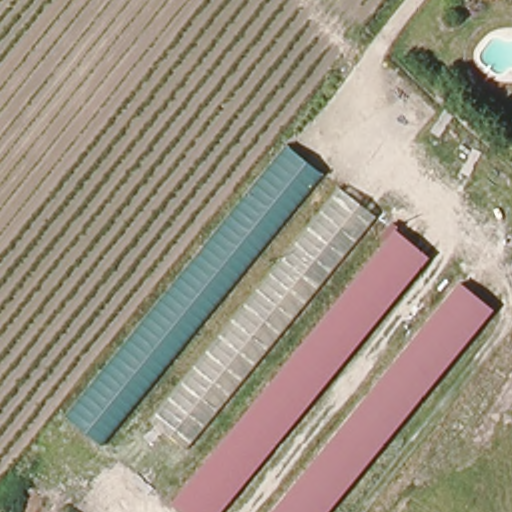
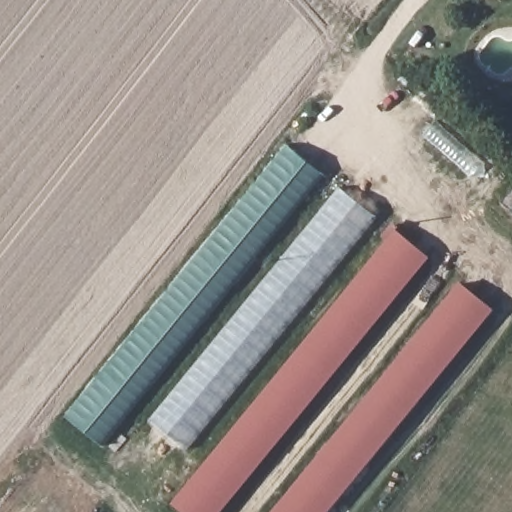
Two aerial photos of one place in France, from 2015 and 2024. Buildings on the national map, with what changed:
unchanged [(323,175),(105,448),(68,417),(286,144),(323,175)]
unchanged [(375,217),(189,451),(152,420),(338,186),(375,217)]
unchanged [(217,512),(178,512),(171,505),(389,232),(421,258),(217,512)]
unchanged [(326,512),(275,512),(457,283),(489,310),(326,512)]

